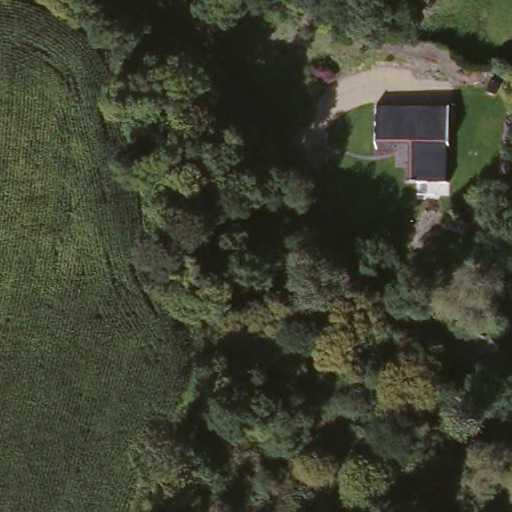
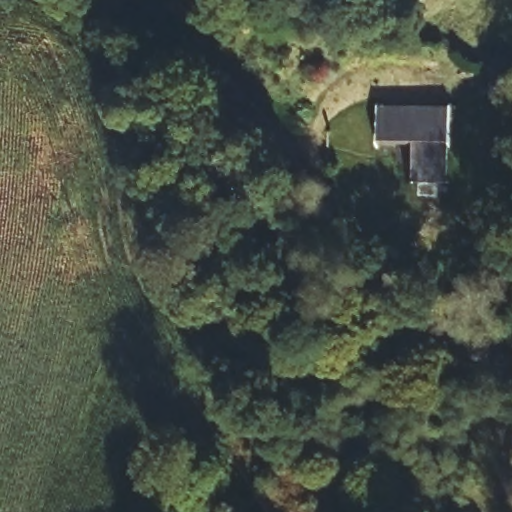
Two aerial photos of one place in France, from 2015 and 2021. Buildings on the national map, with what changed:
unchanged [(450,181),(406,181),(408,145),(374,145),(376,110),(451,108),(450,181)]

